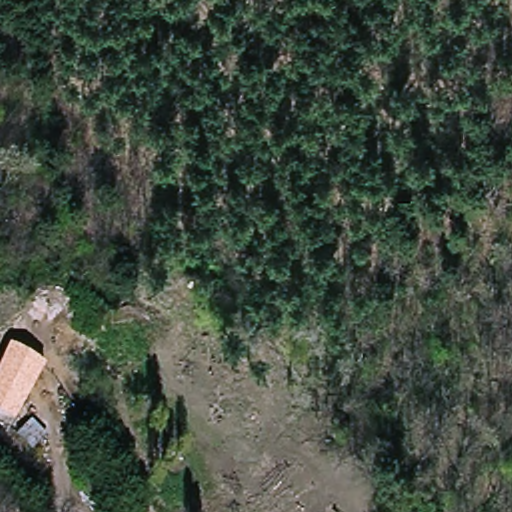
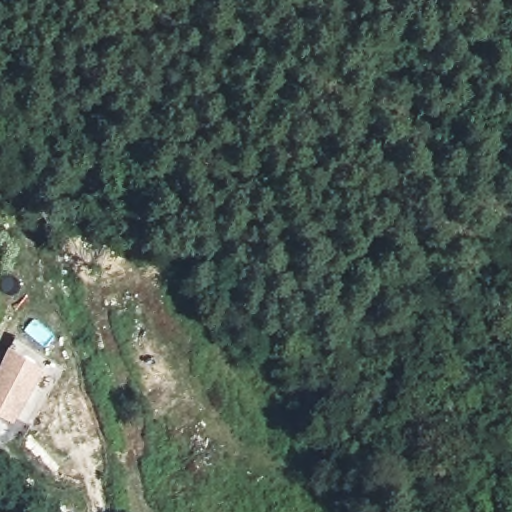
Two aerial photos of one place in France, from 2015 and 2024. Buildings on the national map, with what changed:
unchanged [(0,370),(7,355),(26,350),(43,366),(16,425),(0,417),(0,370)]
unchanged [(31,449),(16,435),(28,422),(45,437),(31,449)]

